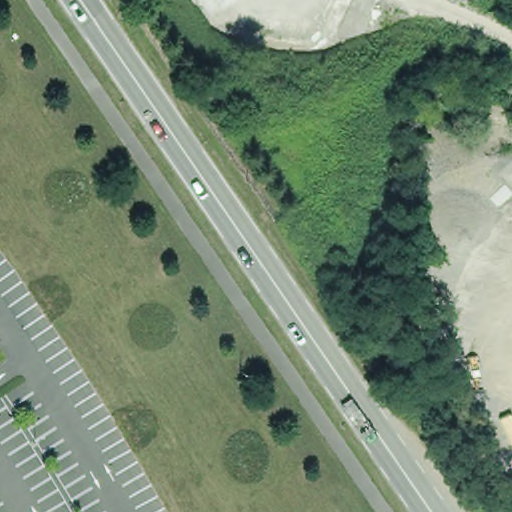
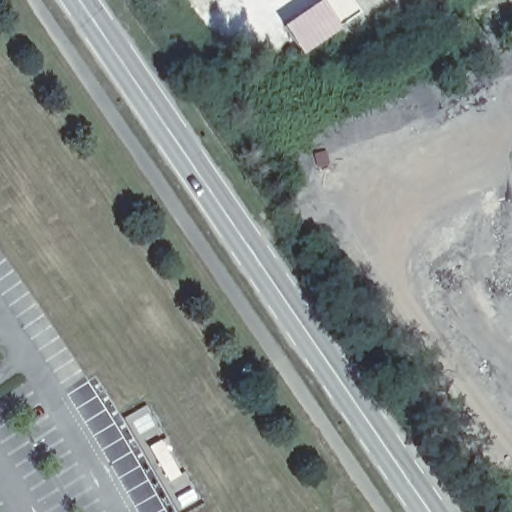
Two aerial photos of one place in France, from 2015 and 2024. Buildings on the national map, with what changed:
new [(305,55),(285,26),(322,0),(342,29),(305,55)]

